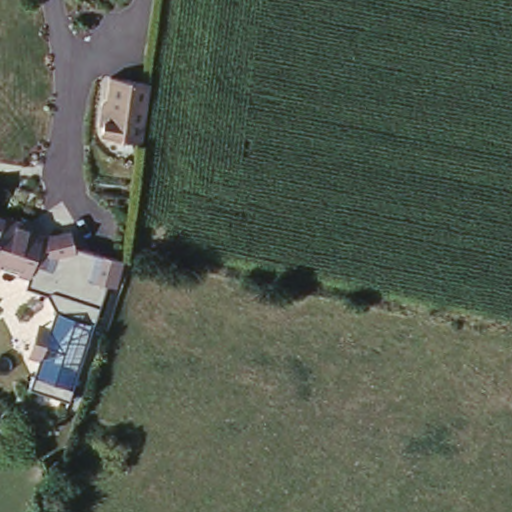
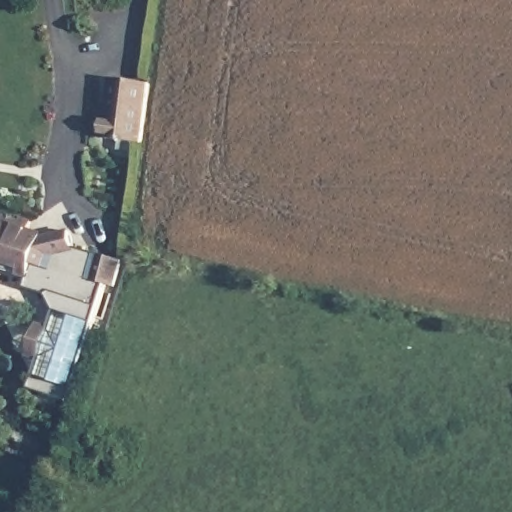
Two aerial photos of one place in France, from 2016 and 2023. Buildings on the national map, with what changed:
unchanged [(148,81),(140,142),(100,136),(109,75),(148,81)]
unchanged [(47,234),(69,229),(74,247),(125,262),(118,281),(121,283),(106,330),(82,396),(72,392),(70,399),(31,387),(40,357),(30,355),(39,327),(48,330),(55,312),(49,293),(16,285),(19,275),(0,268),(0,217),(47,234)]

